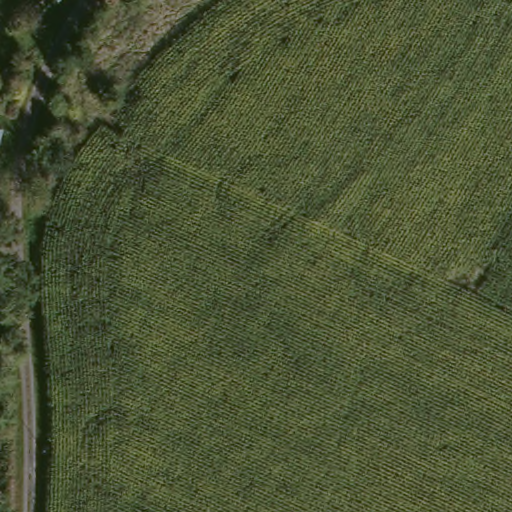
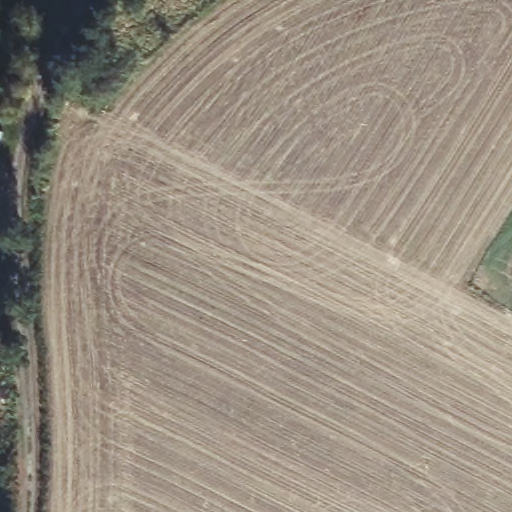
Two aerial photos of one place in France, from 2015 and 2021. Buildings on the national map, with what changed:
unchanged [(6,119),(1,139),(0,144),(0,118),(1,118),(6,119)]

